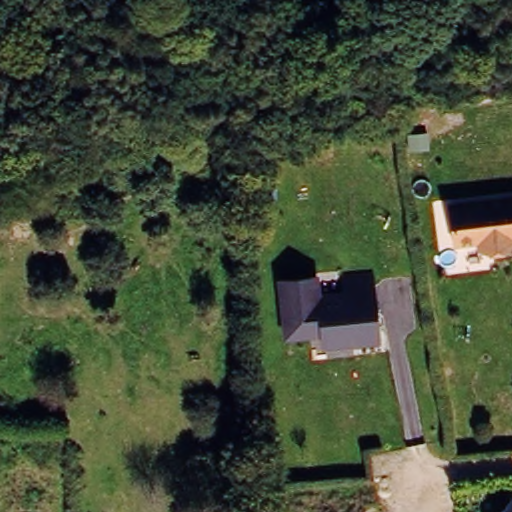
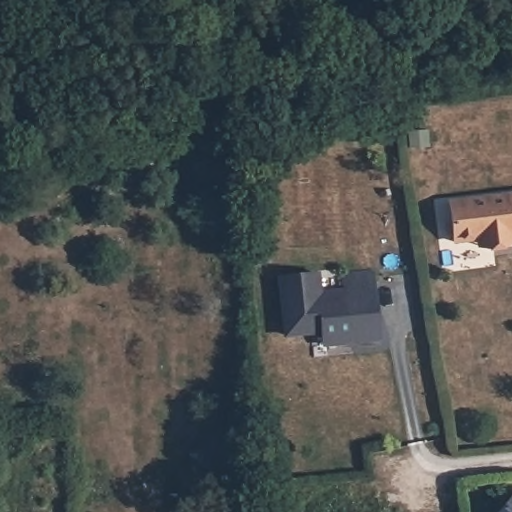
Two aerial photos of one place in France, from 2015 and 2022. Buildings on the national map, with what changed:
unchanged [(472,244),(448,247),(443,207),(512,198),(512,239),(507,239),(508,245),(486,248),(473,250),(472,244)]
unchanged [(321,354),(321,349),(320,340),(284,344),(276,274),(314,270),(316,290),(341,288),(340,272),(369,269),(377,344),(377,349),(321,354)]
unchanged [(512,493),(512,512),(496,512),(512,493)]

